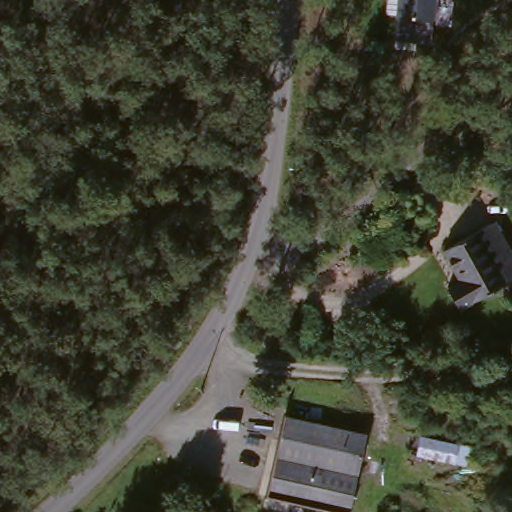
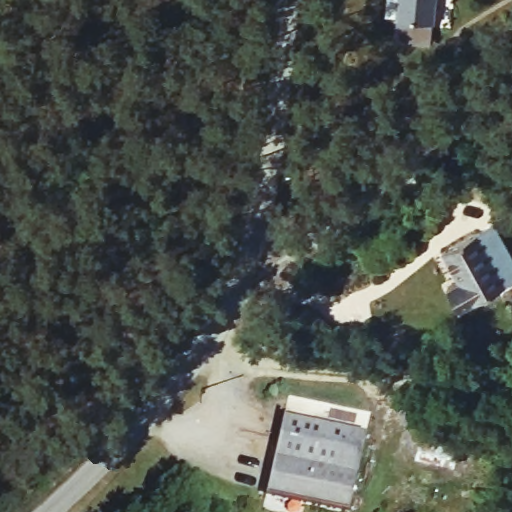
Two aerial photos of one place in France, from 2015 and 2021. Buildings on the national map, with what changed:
unchanged [(437,21),(396,16),(397,0),(439,0),(437,21)]
unchanged [(454,282),(438,252),(488,225),(512,267),(512,277),(453,309),(441,290),(454,282)]
unchanged [(363,429),(341,512),(288,512),(256,507),(281,413),(363,429)]
unchanged [(471,476),(413,465),(416,439),(474,452),(471,476)]

